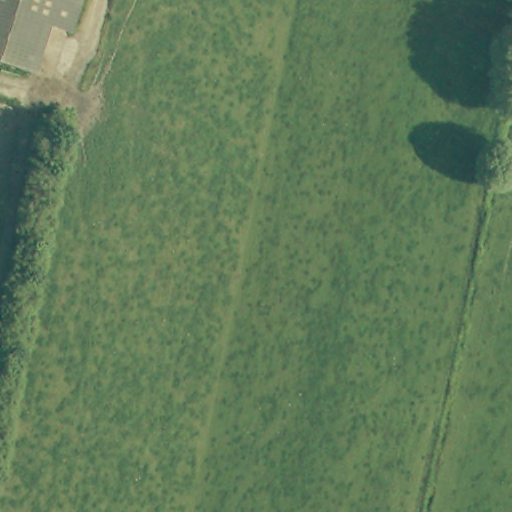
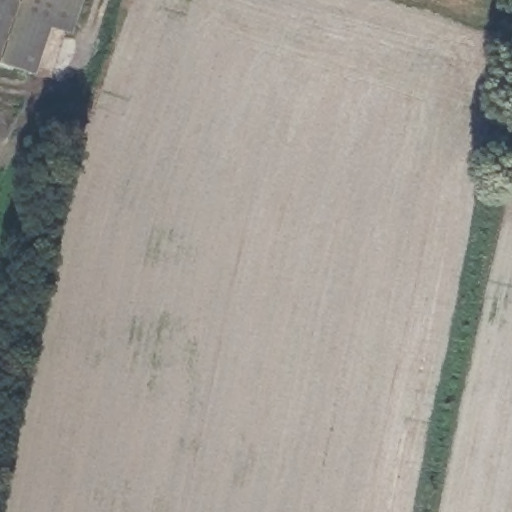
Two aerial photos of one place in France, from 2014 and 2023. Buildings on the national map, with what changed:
unchanged [(49,30),(32,78),(0,67),(0,0),(81,0),(70,35),(49,30)]

